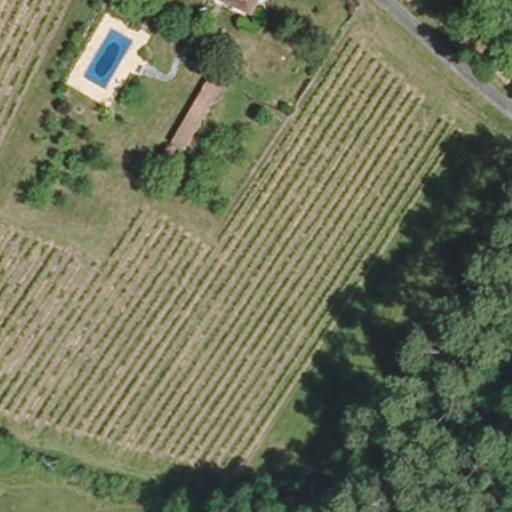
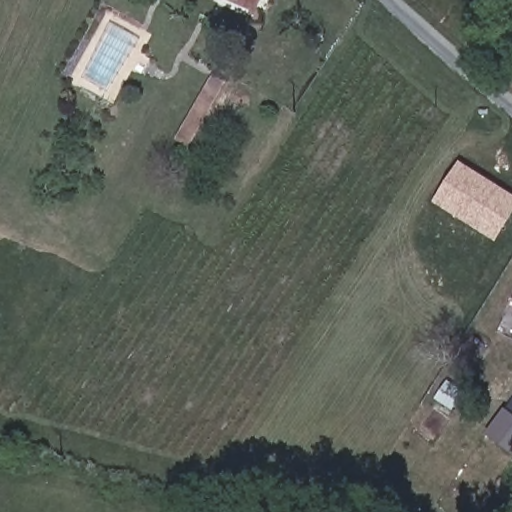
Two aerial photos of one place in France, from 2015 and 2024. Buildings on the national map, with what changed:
unchanged [(240,0),(262,0),(258,8),(240,0)]
unchanged [(162,149),(185,108),(196,88),(213,97),(200,118),(178,157),(162,149)]
new [(512,218),(496,243),(433,204),(459,161),(512,194),(512,218)]
new [(512,397),(512,452),(486,433),(512,397)]

